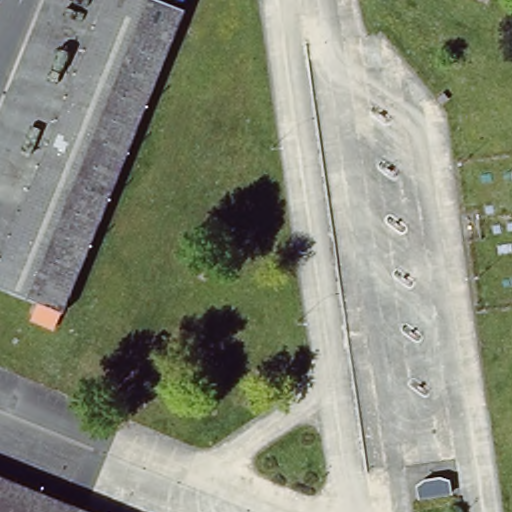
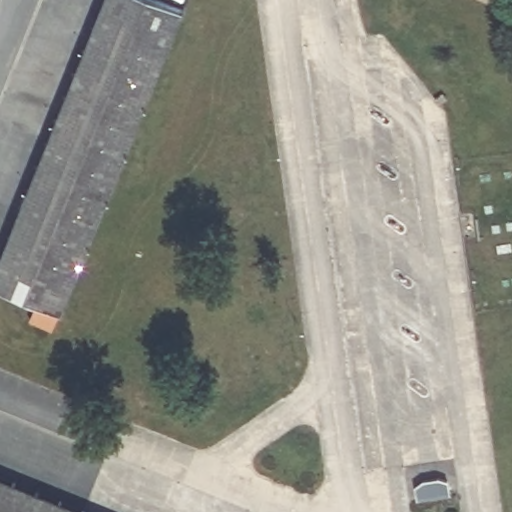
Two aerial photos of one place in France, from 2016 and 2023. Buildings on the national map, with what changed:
unchanged [(0,291),(0,258),(105,0),(157,0),(186,11),(63,314),(0,291)]
unchanged [(0,512),(0,475),(88,512),(0,512)]
unchanged [(425,483),(444,481),(453,486),(457,497),(422,502),(419,490),(425,483)]

